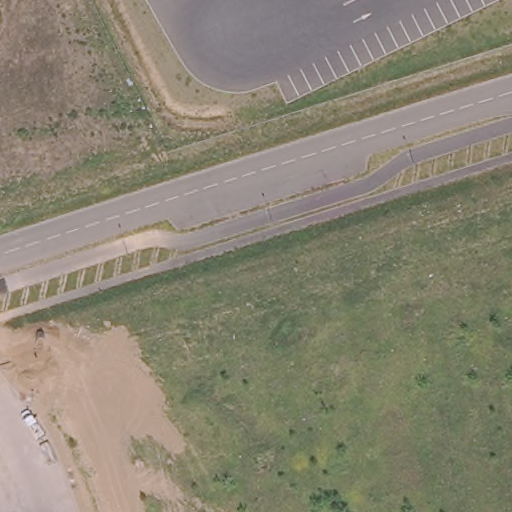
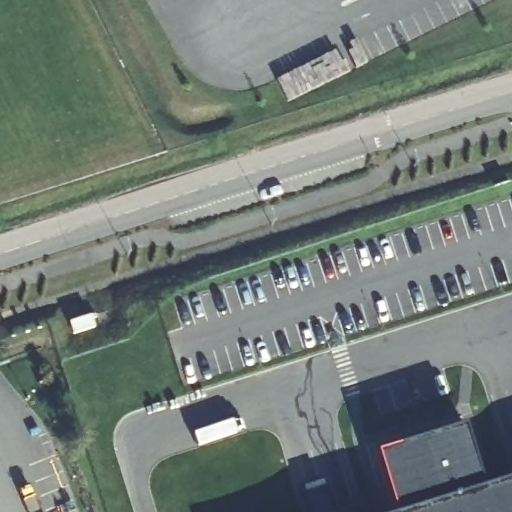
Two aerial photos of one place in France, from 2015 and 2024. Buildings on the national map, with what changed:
new [(375,450),(463,427),(480,486),(510,479),(505,464),(512,462),(512,512),(394,512),(375,450)]
new [(363,508),(364,512),(352,512),(363,508)]

